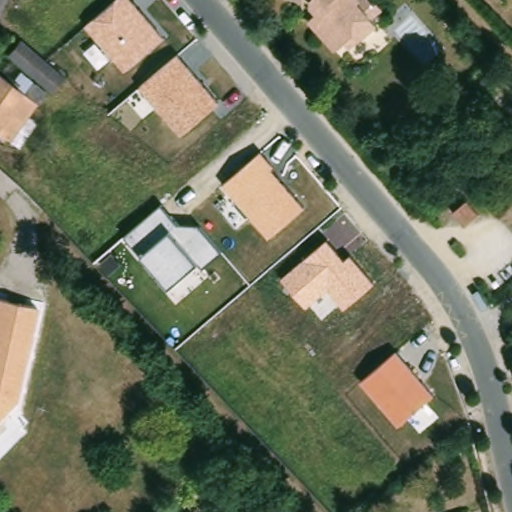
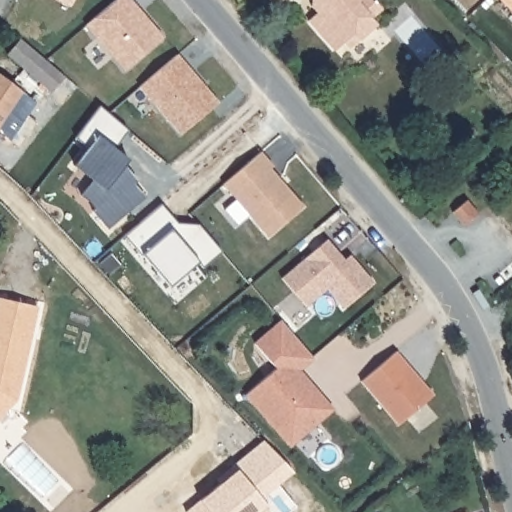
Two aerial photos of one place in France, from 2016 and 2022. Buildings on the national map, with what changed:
unchanged [(87,25),(115,0),(131,0),(164,35),(123,70),(87,25)]
unchanged [(381,10),(371,19),(375,23),(355,40),(352,36),(335,50),(308,19),(315,12),(312,7),(311,0),(372,0),(381,10)]
unchanged [(8,61),(15,48),(25,33),(58,51),(50,67),(65,75),(58,90),(51,86),(8,61)]
unchanged [(178,53),(218,101),(181,134),(139,86),(178,53)]
unchanged [(13,81),(17,75),(45,91),(16,143),(0,136),(0,75),(13,81)]
new [(92,149),(79,139),(104,107),(133,132),(118,149),(132,161),(126,167),(140,182),(136,185),(147,198),(110,230),(95,212),(97,210),(90,202),(83,196),(95,181),(77,167),(92,149)]
unchanged [(223,183),(262,149),(274,162),(270,166),(303,207),(269,237),(223,183)]
unchanged [(470,195),(482,210),(468,221),(455,207),(470,195)]
unchanged [(161,205),(177,223),(198,224),(222,251),(203,267),(196,260),(170,283),(144,253),(141,254),(124,235),(161,205)]
unchanged [(328,291),(307,308),(282,279),(326,238),(344,260),(351,255),(374,281),(344,309),(328,291)]
unchanged [(13,402),(0,415),(0,299),(36,307),(13,402)]
new [(336,414),(295,449),(251,398),(281,372),(260,348),(287,325),(318,361),(302,374),(316,390),(323,398),(336,414)]
unchanged [(360,381),(398,351),(434,393),(397,425),(360,381)]

